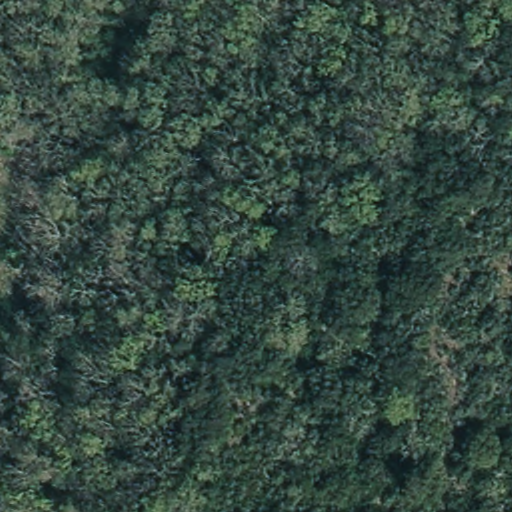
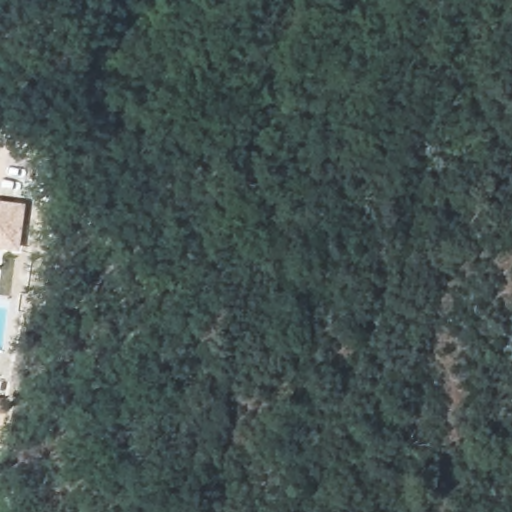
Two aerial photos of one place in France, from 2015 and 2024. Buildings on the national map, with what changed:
new [(19,251),(0,250),(0,200),(25,203),(19,251)]
unchanged [(8,512),(0,512),(0,503),(5,502),(8,512)]

